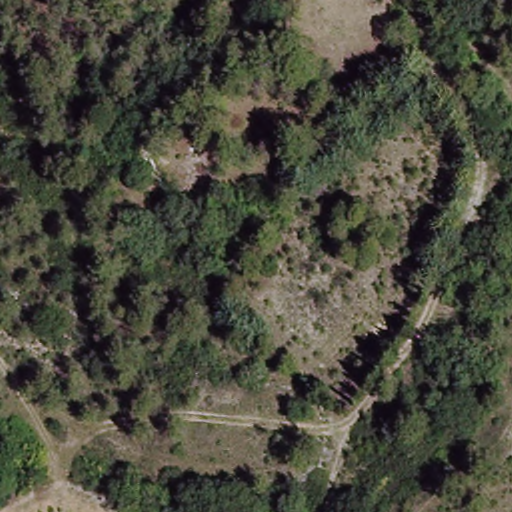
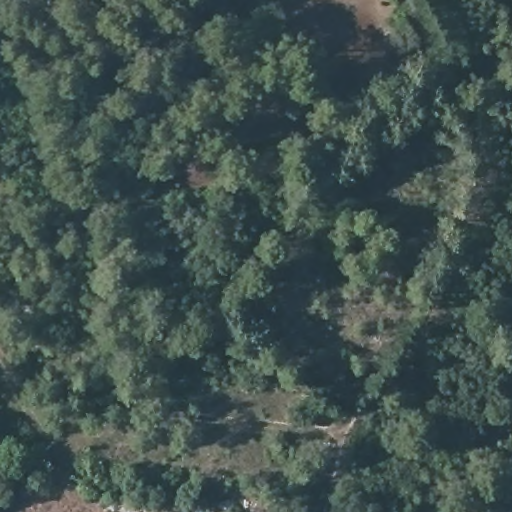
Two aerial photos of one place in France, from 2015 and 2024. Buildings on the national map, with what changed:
unchanged [(221,170),(201,184),(189,162),(210,150),(221,170)]

